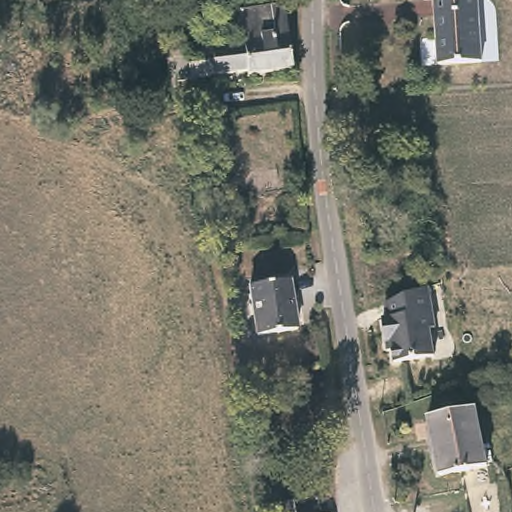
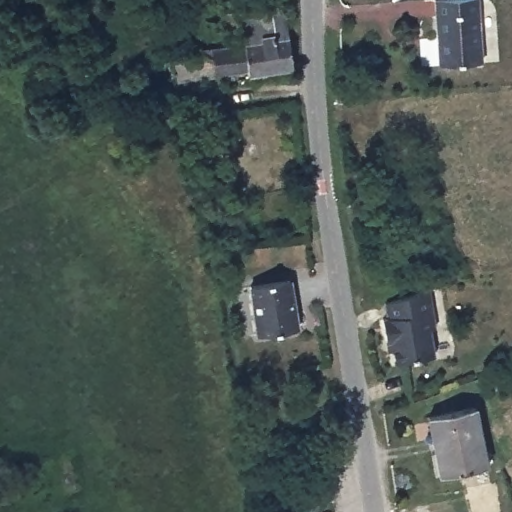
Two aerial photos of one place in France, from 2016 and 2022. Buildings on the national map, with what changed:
unchanged [(477,63),(434,64),(433,0),(476,0),(477,63)]
unchanged [(245,42),(245,38),(244,33),(229,35),(225,11),(284,3),(294,69),(250,74),(250,73),(245,42)]
unchanged [(182,83),(175,51),(245,42),(250,73),(182,83)]
unchanged [(293,331),(254,337),(246,286),(285,280),(293,331)]
unchanged [(427,286),(433,329),(427,330),(432,358),(396,363),(393,342),(388,343),(385,320),(387,320),(385,304),(427,286)]
unchanged [(488,468),(439,477),(428,416),(476,407),(488,468)]
unchanged [(289,512),(287,498),(299,496),(301,512),(289,512)]

